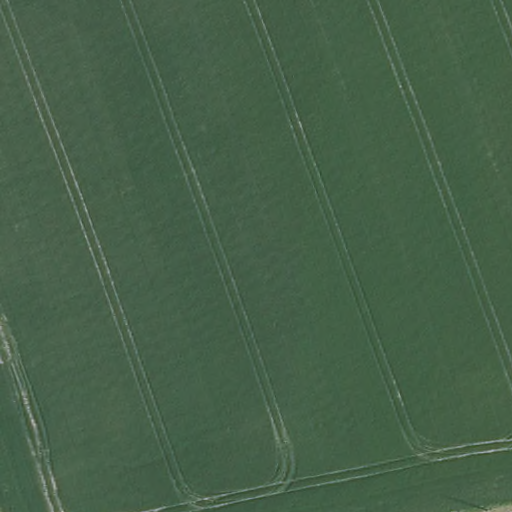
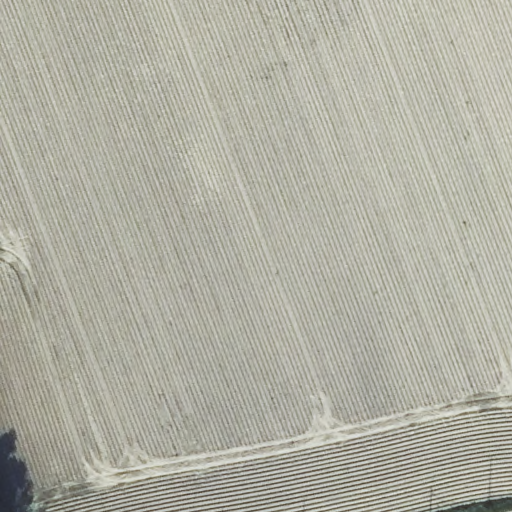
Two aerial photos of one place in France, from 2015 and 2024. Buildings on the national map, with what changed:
[]

